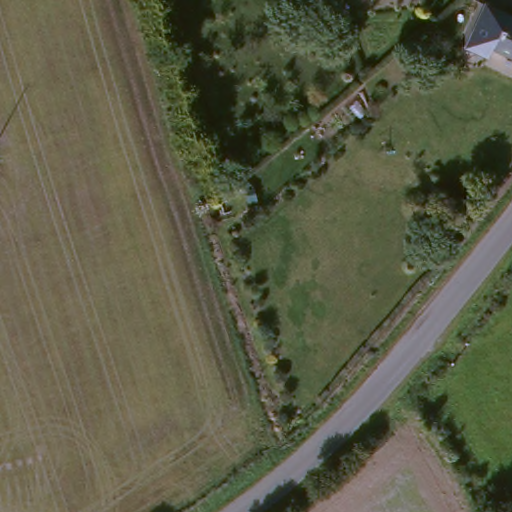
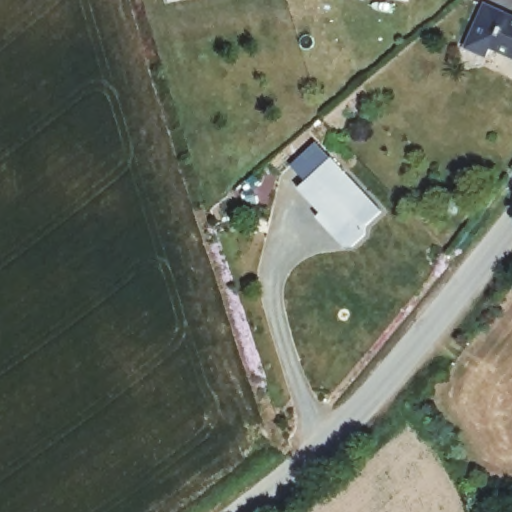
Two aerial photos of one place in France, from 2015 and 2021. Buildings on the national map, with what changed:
unchanged [(499,55),(481,45),(502,6),(512,11),(512,51),(504,46),(499,55)]
new [(297,187),(331,155),(382,210),(367,224),(367,230),(353,244),(345,245),(317,216),(320,212),(297,187)]
unchanged [(450,179),(443,192),(420,182),(427,167),(450,179)]

